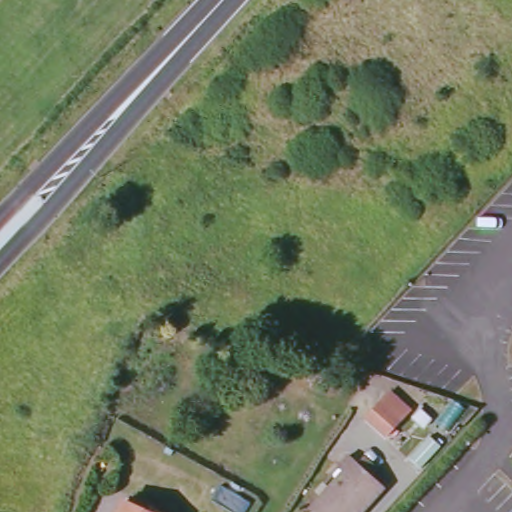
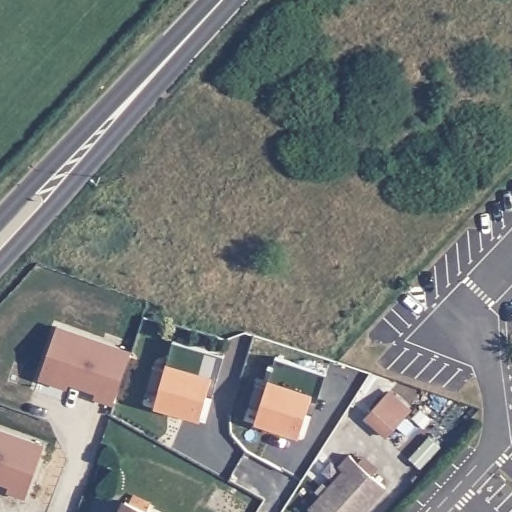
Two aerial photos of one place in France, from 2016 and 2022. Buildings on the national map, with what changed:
new [(95,398),(97,391),(69,382),(67,388),(40,379),(57,325),(132,351),(113,404),(95,398)]
new [(156,404),(159,394),(144,389),(152,363),(166,368),(174,340),(224,356),(214,396),(208,394),(201,417),(156,404)]
demolished [(337,360),(327,384),(306,378),(316,354),(337,360)]
new [(308,412),(300,434),(257,419),(260,408),(249,404),(257,379),(268,384),(277,357),(326,374),(315,414),(308,412)]
unchanged [(385,433),(364,414),(385,389),(406,408),(385,433)]
new [(10,486),(0,482),(0,428),(45,444),(26,496),(8,490),(10,486)]
unchanged [(385,490),(365,512),(311,512),(310,512),(343,476),(338,471),(349,459),(385,490)]
unchanged [(145,505),(142,512),(117,512),(121,504),(127,506),(131,498),(145,505)]

